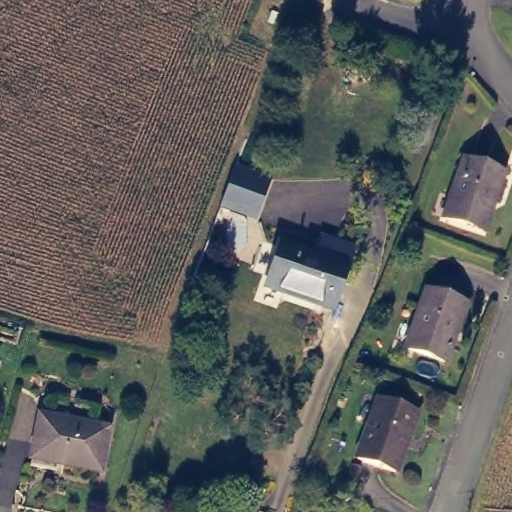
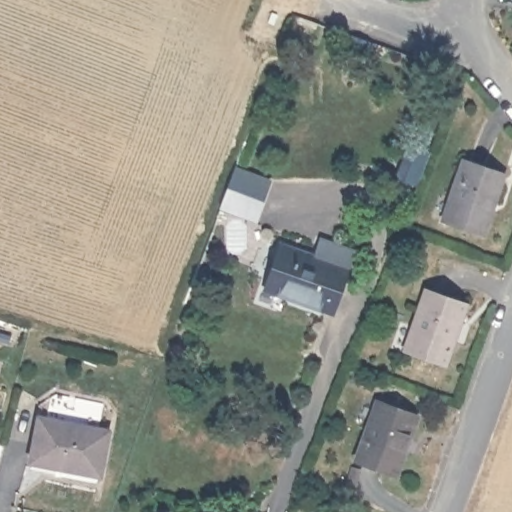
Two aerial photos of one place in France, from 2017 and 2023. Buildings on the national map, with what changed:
unchanged [(487,234),(450,223),(468,163),(505,175),(487,234)]
unchanged [(337,307),(273,283),(290,239),(354,262),(337,307)]
unchanged [(450,356),(413,342),(435,286),(471,302),(450,356)]
unchanged [(400,474),(362,461),(382,403),(419,416),(400,474)]
unchanged [(99,476),(63,464),(65,461),(33,451),(45,414),(85,427),(85,429),(112,438),(99,476)]

